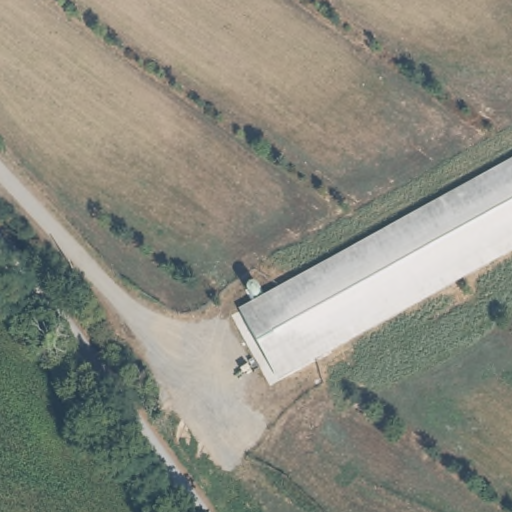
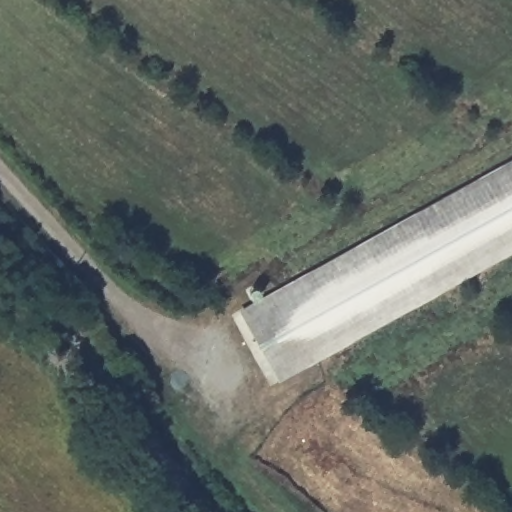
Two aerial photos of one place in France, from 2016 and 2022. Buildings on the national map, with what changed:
unchanged [(512,253),(283,379),(241,309),(512,160),(512,253)]

